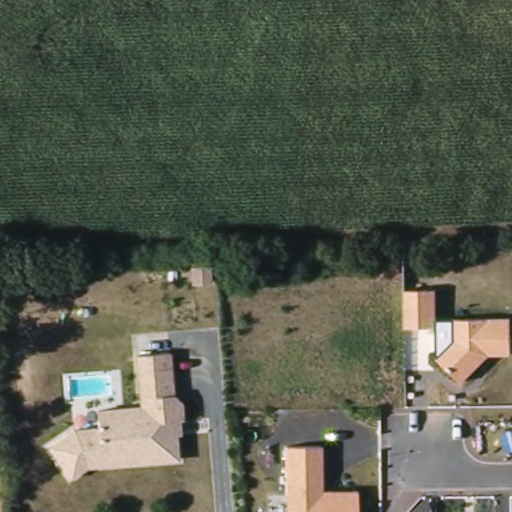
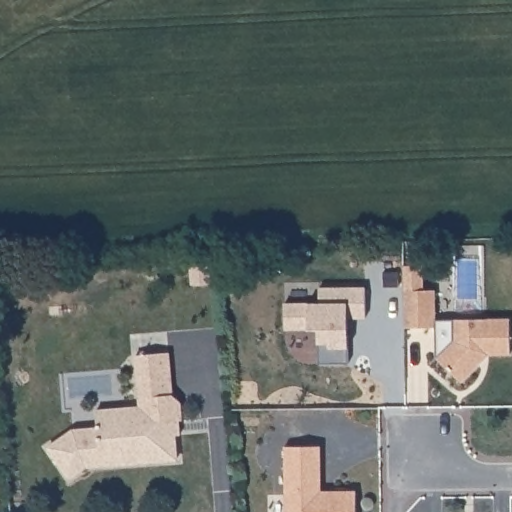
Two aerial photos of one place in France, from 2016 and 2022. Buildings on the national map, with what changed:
unchanged [(411,322),(411,285),(442,285),(442,321),(411,322)]
new [(284,302),(319,302),(318,287),(365,286),(365,317),(347,317),(348,363),(318,363),(317,328),(284,329),(284,302)]
unchanged [(460,335),(459,313),(512,313),(512,349),(495,349),(468,376),(443,351),(460,335)]
unchanged [(168,350),(173,397),(179,396),(180,421),(139,423),(138,403),(134,355),(168,350)]
unchanged [(48,442),(73,426),(98,425),(96,408),(138,403),(139,423),(180,421),(181,435),(176,435),(177,457),(86,466),(69,480),(48,442)]
unchanged [(292,442),(328,441),(329,486),(363,486),(364,512),(294,512),(292,442)]

